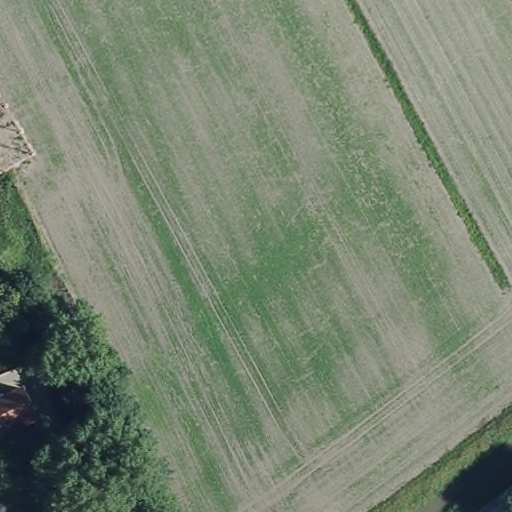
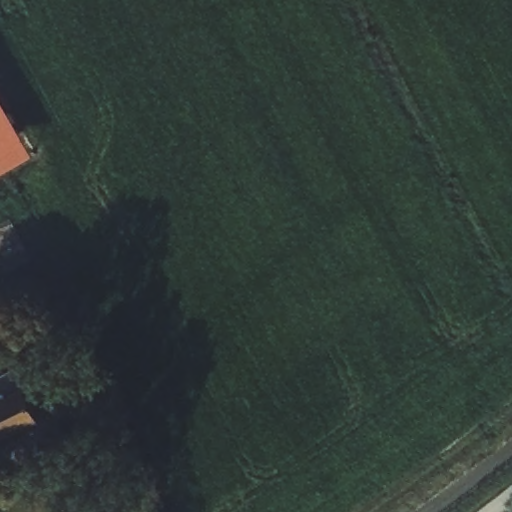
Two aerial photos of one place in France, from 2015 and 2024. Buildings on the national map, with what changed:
new [(38,162),(0,183),(0,92),(38,162)]
unchanged [(56,378),(53,367),(78,356),(83,367),(56,378)]
unchanged [(0,440),(0,400),(28,387),(43,420),(0,440)]
unchanged [(63,464),(51,438),(73,429),(83,456),(63,464)]

